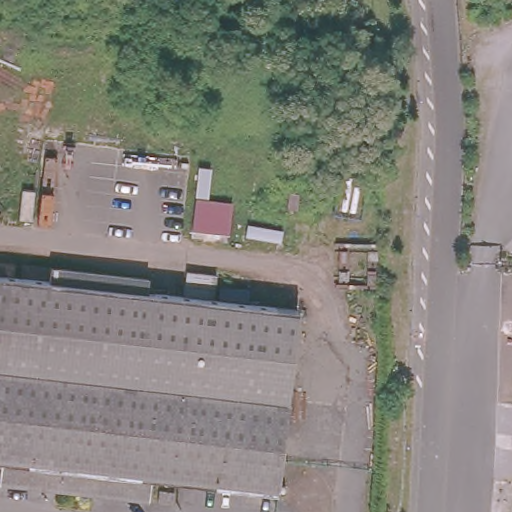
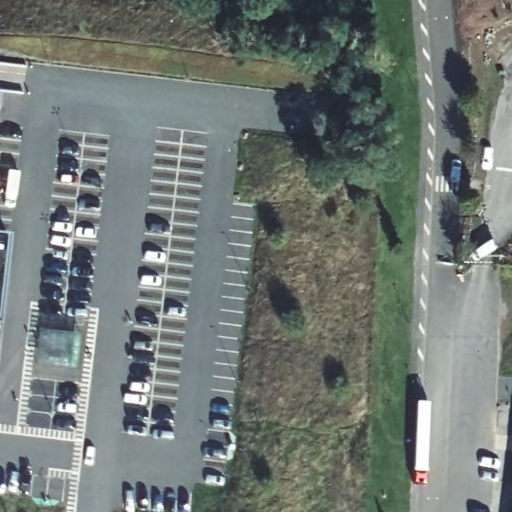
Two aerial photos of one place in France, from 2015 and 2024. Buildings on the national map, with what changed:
new [(0,336),(0,235),(10,236),(0,336)]
demolished [(0,482),(0,274),(48,280),(48,267),(149,277),(147,292),(296,309),(272,492),(151,477),(146,499),(0,482)]
demolished [(178,485),(175,503),(154,501),(158,483),(178,485)]

